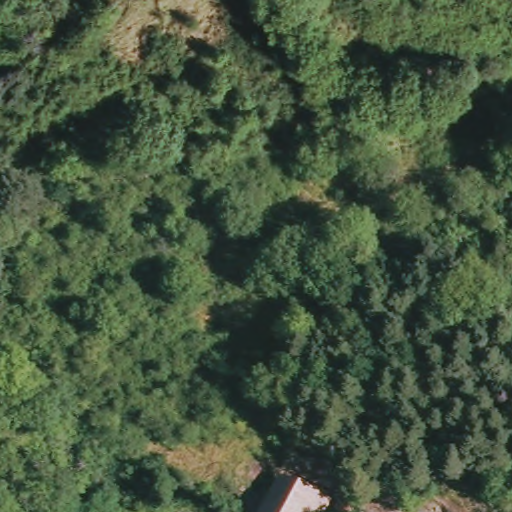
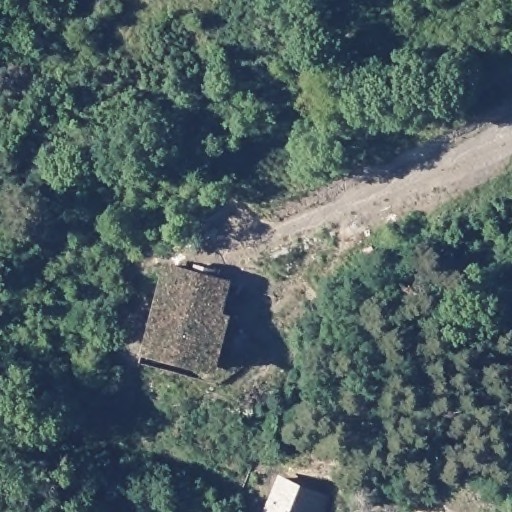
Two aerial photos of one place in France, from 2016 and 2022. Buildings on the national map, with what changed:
new [(164,270),(227,286),(219,314),(226,317),(212,366),(144,347),(164,270)]
new [(327,499),(321,512),(270,512),(283,482),(327,499)]

